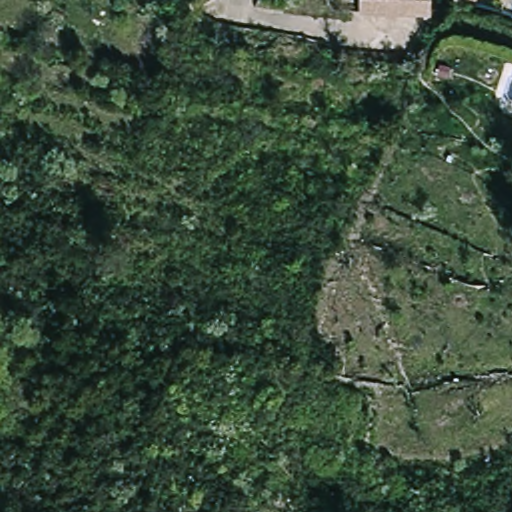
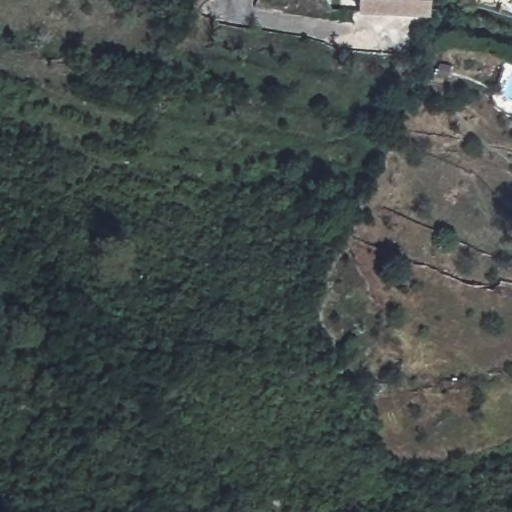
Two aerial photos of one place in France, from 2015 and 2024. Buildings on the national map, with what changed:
unchanged [(363,9),(364,0),(434,0),(433,12),(363,9)]

